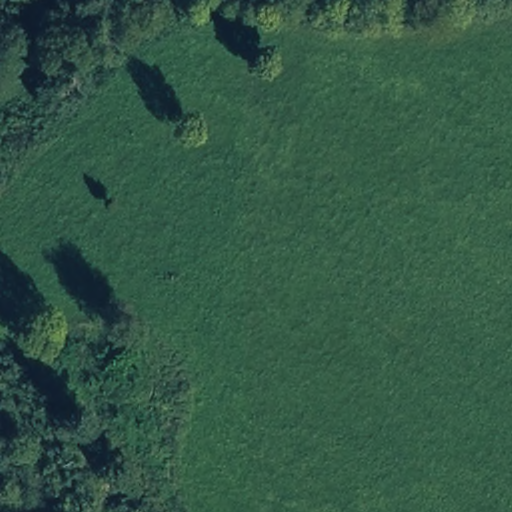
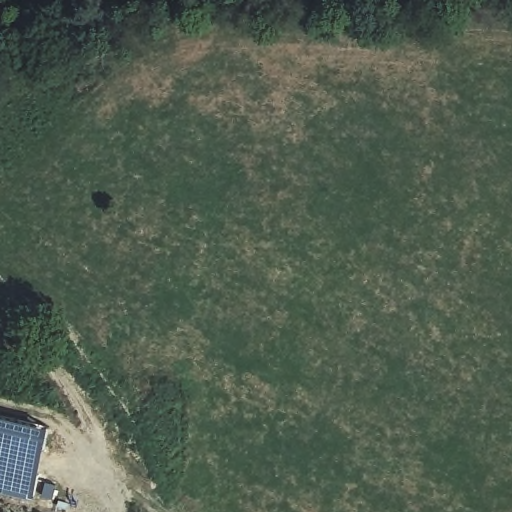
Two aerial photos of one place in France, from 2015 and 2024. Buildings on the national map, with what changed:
new [(0,492),(0,414),(50,426),(32,500),(0,492)]

